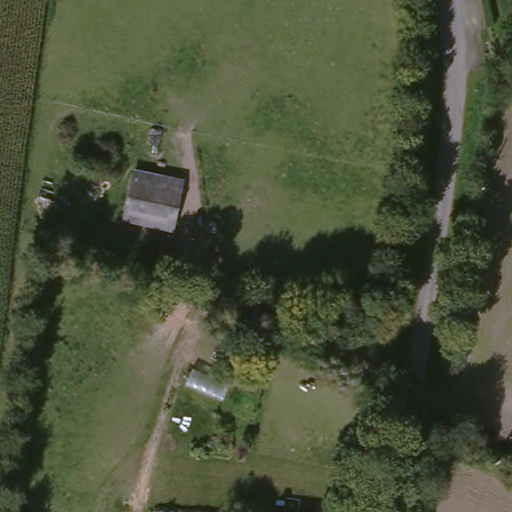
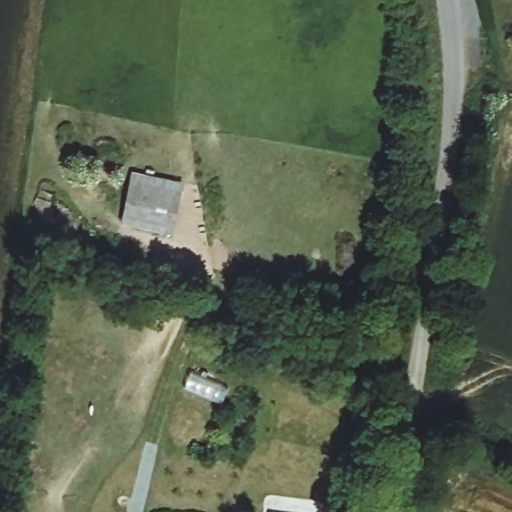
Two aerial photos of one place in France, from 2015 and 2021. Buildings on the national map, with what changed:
unchanged [(171,232),(121,222),(131,169),(184,179),(171,232)]
unchanged [(308,512),(271,512),(271,509),(308,512)]

